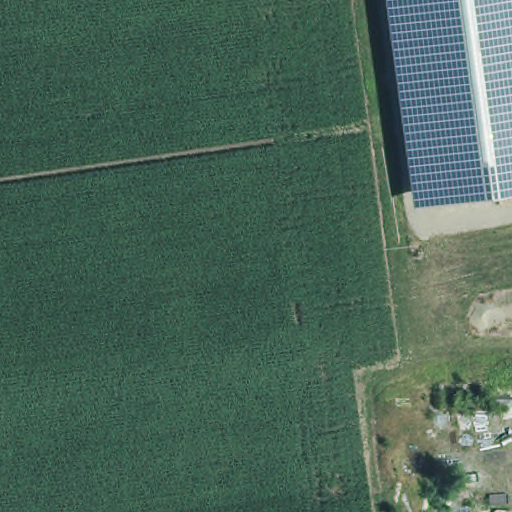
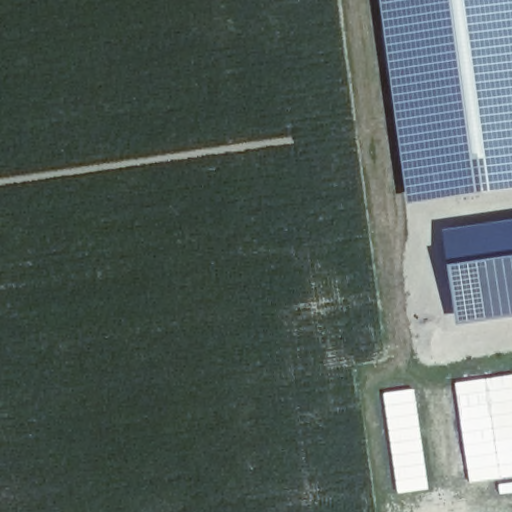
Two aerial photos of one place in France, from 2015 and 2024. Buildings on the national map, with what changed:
unchanged [(383,0),(512,0),(512,192),(410,205),(383,0)]
new [(512,226),(512,322),(455,331),(440,239),(512,226)]
new [(512,375),(512,477),(468,483),(453,382),(512,375)]
new [(414,388),(428,489),(397,494),(382,393),(414,388)]

